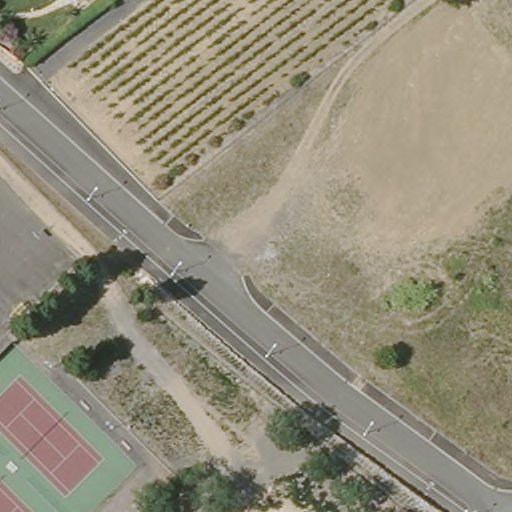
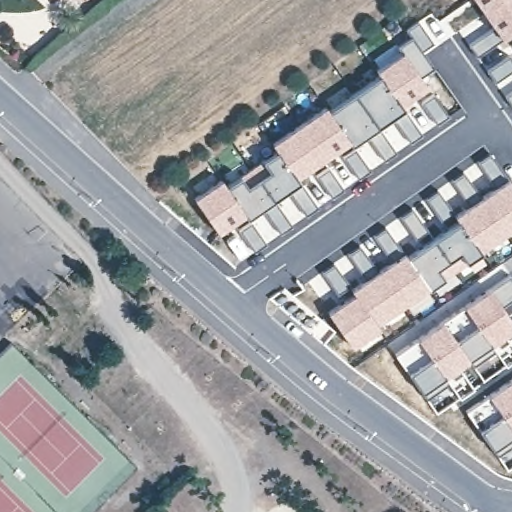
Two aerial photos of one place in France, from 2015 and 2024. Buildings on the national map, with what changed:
unchanged [(86,0),(93,0),(90,3),(86,0)]
new [(501,40),(483,14),(474,0),(512,0),(512,32),(509,35),(501,40)]
new [(410,36),(405,27),(417,20),(432,41),(421,49),(434,67),(422,76),(401,49),(398,46),(410,36)]
new [(379,66),(401,49),(424,77),(429,86),(404,109),(379,74),(376,68),(379,66)]
new [(379,74),(404,109),(352,145),(329,107),(379,74)]
new [(327,105),(329,107),(352,145),(338,153),(300,182),(275,149),(271,144),(327,105)]
new [(275,149),(300,182),(247,217),(227,182),(275,149)]
new [(498,182),(509,176),(512,181),(512,230),(482,252),(457,218),(453,214),(455,212),(498,182)]
new [(223,177),(227,182),(247,217),(218,234),(194,197),(223,177)]
new [(429,240),(457,218),(482,252),(430,290),(405,252),(429,240)]
new [(353,292),(350,287),(405,252),(430,290),(352,347),(327,311),(353,292)]
new [(512,278),(512,301),(506,306),(512,316),(512,332),(494,346),(462,307),(492,287),(510,276),(512,278)]
new [(494,346),(505,337),(507,336),(512,344),(512,360),(506,365),(495,351),(472,362),(453,332),(445,320),(462,307),(494,346)]
new [(445,320),(472,362),(445,379),(416,339),(445,320)]
new [(416,339),(445,379),(460,369),(473,387),(458,397),(447,381),(424,395),(420,389),(408,372),(395,355),(416,339)]
new [(464,410),(486,395),(512,377),(512,438),(494,451),(479,428),(464,410)]

